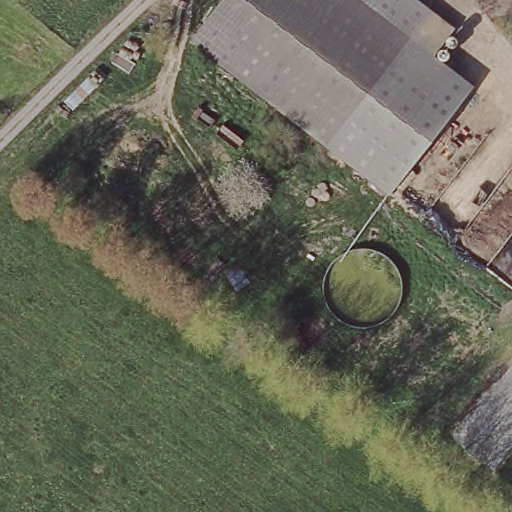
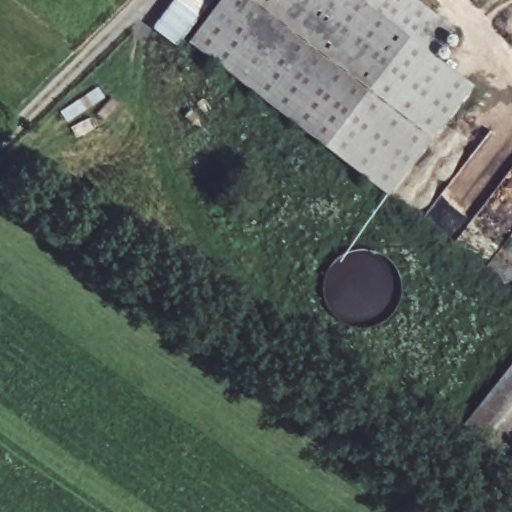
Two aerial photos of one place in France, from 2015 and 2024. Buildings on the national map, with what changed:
new [(177,44),(154,25),(174,0),(213,0),(177,44)]
unchanged [(226,0),(376,0),(422,36),(332,155),(191,46),(226,0)]
unchanged [(455,26),(434,56),(472,85),(389,196),(332,155),(422,36),(376,0),(421,0),(455,26)]
unchanged [(512,379),(512,457),(498,475),(461,447),(512,379)]

